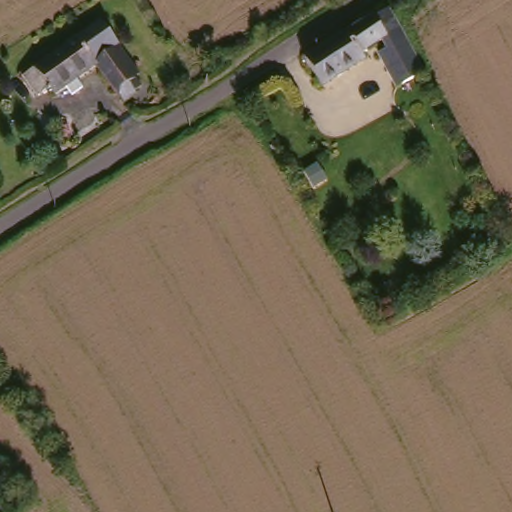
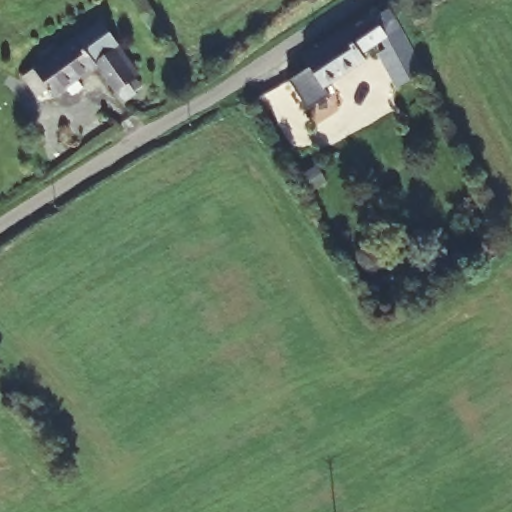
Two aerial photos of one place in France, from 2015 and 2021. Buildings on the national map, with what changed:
unchanged [(303,60),(387,9),(422,72),(397,86),(378,51),(386,46),(382,40),(360,52),(366,61),(323,89),(303,60)]
unchanged [(99,65),(78,79),(67,85),(54,95),(49,87),(38,95),(24,73),(103,19),(119,42),(116,45),(138,78),(131,83),(138,92),(125,100),(99,65)]

